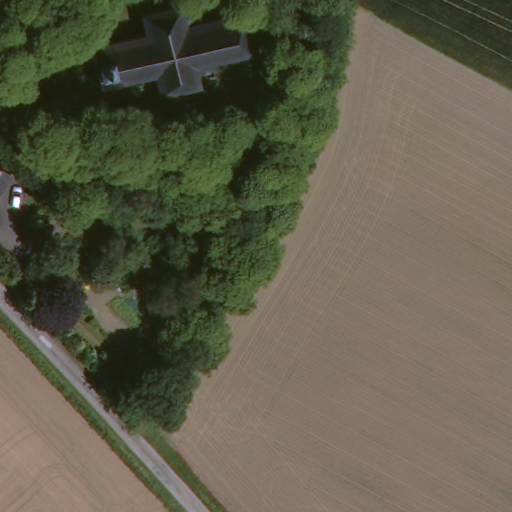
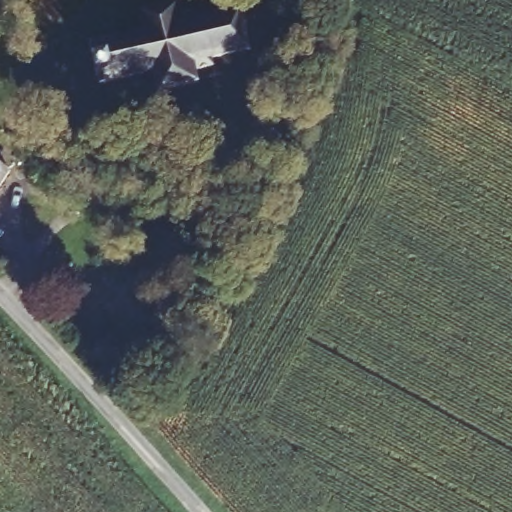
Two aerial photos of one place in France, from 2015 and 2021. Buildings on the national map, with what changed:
unchanged [(180,16),(190,15),(192,24),(238,13),(248,55),(210,64),(211,74),(194,79),(196,89),(156,98),(155,94),(151,76),(93,90),(83,46),(140,34),(136,14),(177,5),(180,16)]
unchanged [(17,179),(0,204),(0,167),(17,179)]

